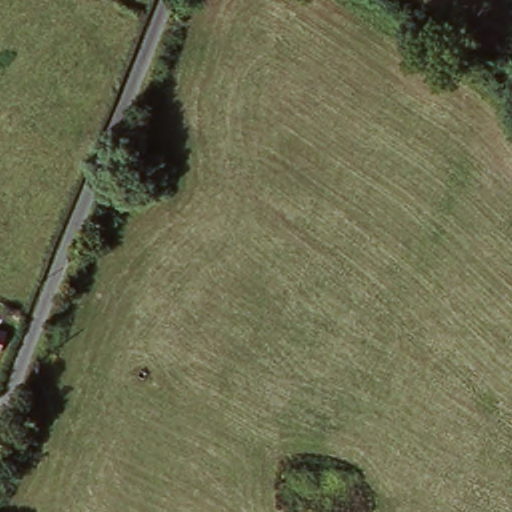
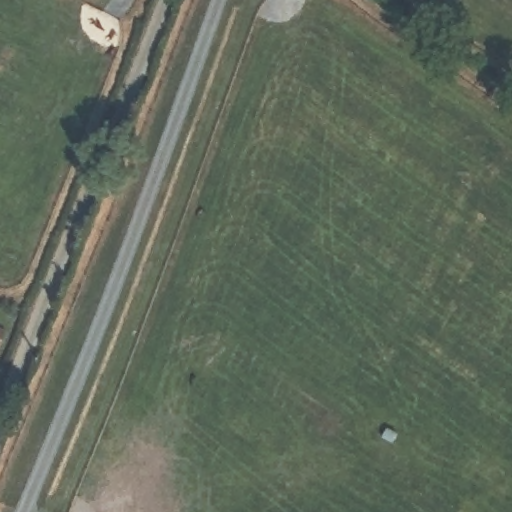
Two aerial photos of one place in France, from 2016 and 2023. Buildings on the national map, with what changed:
unchanged [(1,354),(0,354),(0,329),(9,331),(1,354)]

